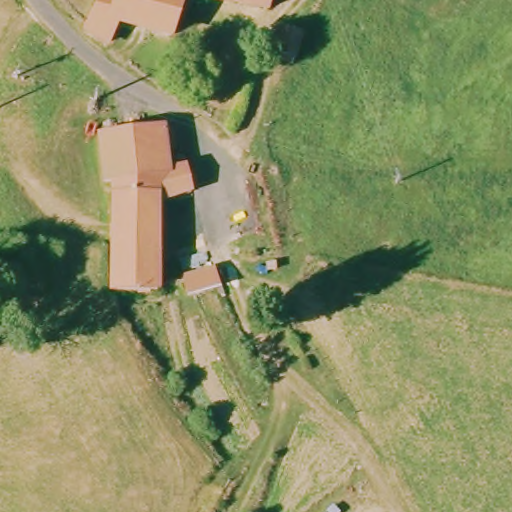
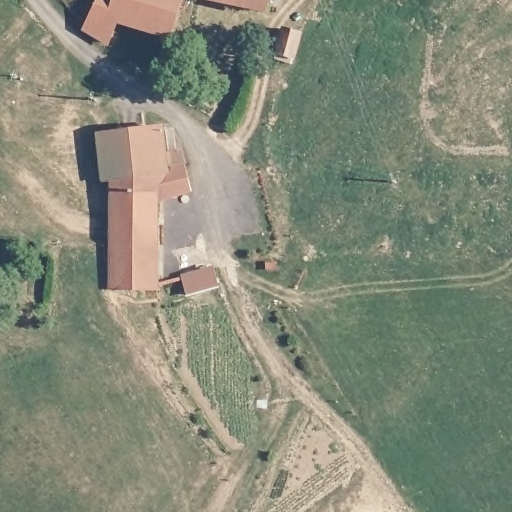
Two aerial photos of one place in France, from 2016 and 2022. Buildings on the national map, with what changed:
unchanged [(117,26),(112,40),(110,51),(86,31),(100,0),(186,0),(181,32),(180,37),(117,26)]
unchanged [(260,1),(256,13),(207,0),(275,0),(272,4),(260,1)]
unchanged [(287,57),(290,41),(300,41),(305,41),(300,57),(287,57)]
unchanged [(15,72),(15,80),(6,80),(6,72),(15,72)]
unchanged [(116,246),(115,180),(98,180),(100,135),(175,130),(175,169),(192,169),(198,192),(163,197),(158,287),(117,287),(116,246)]
unchanged [(221,302),(192,305),(190,287),(217,282),(221,302)]

